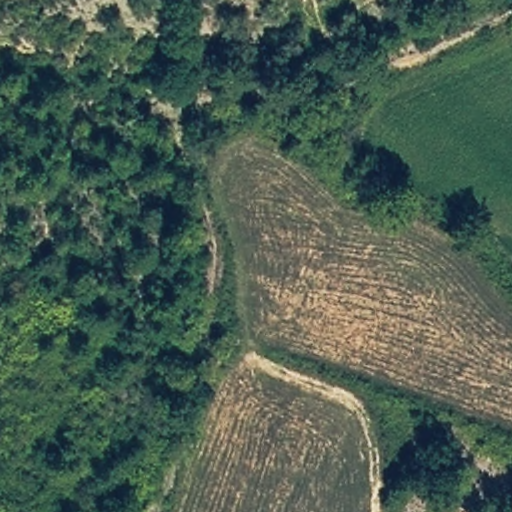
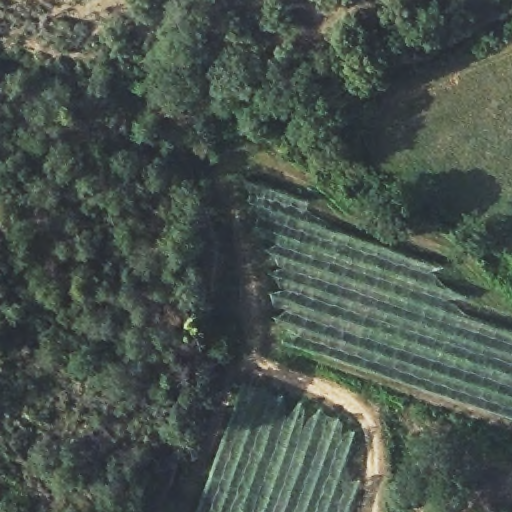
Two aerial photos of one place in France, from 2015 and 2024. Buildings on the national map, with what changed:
[]

